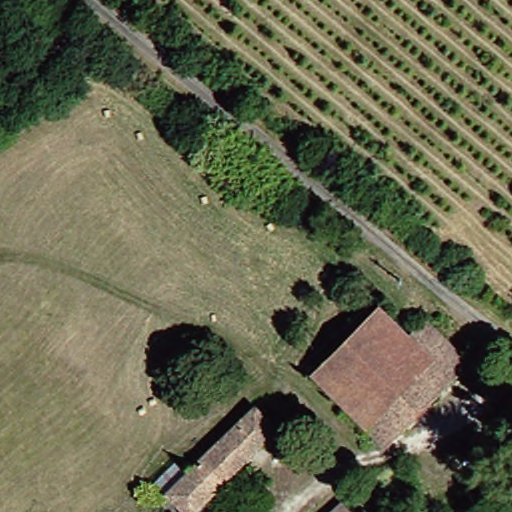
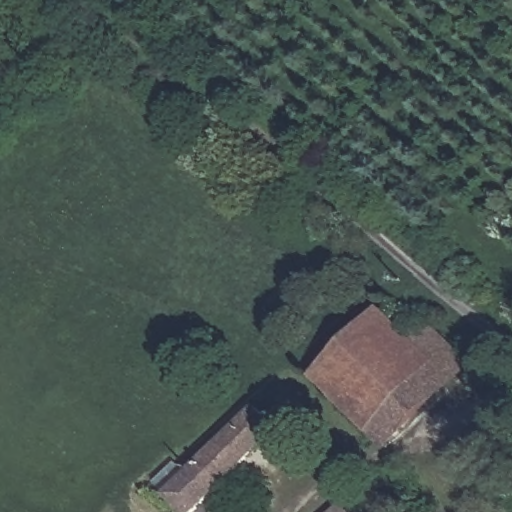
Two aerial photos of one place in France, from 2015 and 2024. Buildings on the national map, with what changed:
unchanged [(313,376),(385,309),(413,339),(433,320),(475,363),(456,382),(431,359),(362,427),(313,376)]
unchanged [(431,359),(456,382),(384,450),(362,427),(431,359)]
unchanged [(169,495),(175,489),(257,412),(274,434),(194,509),(191,512),(188,512),(169,495)]
unchanged [(340,501),(350,512),(329,512),(340,501)]

